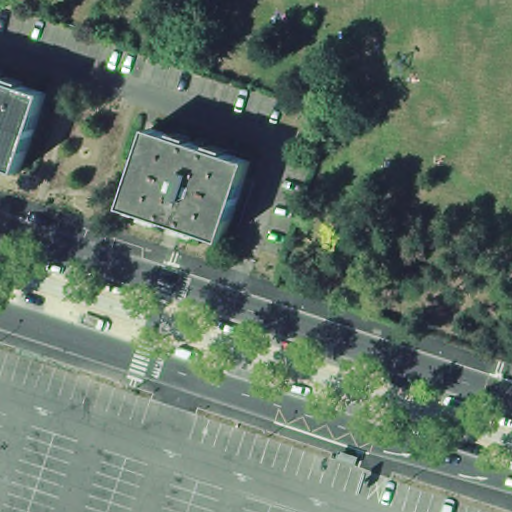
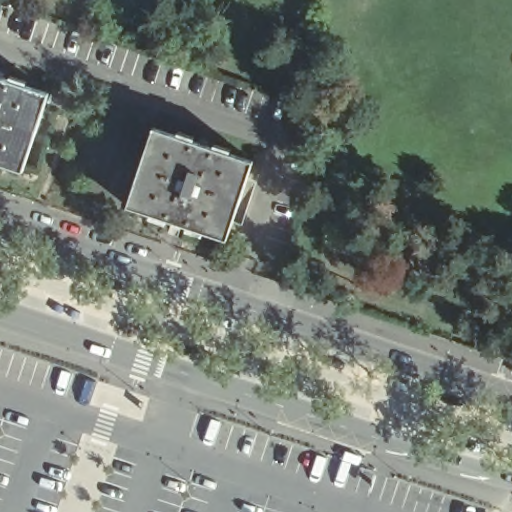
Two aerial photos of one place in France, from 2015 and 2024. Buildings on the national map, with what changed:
unchanged [(43,97),(17,175),(0,170),(0,84),(43,97)]
unchanged [(148,131),(249,164),(223,243),(122,210),(148,131)]

